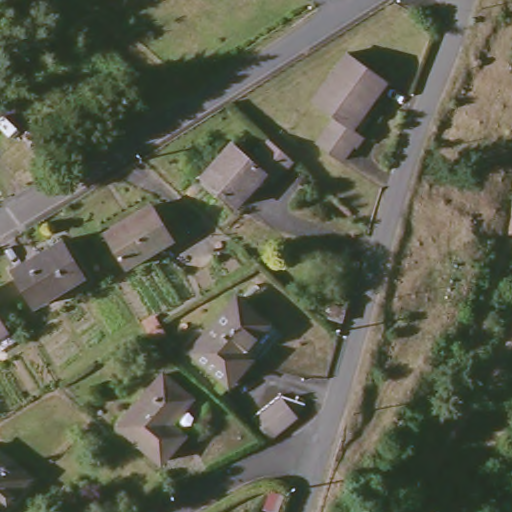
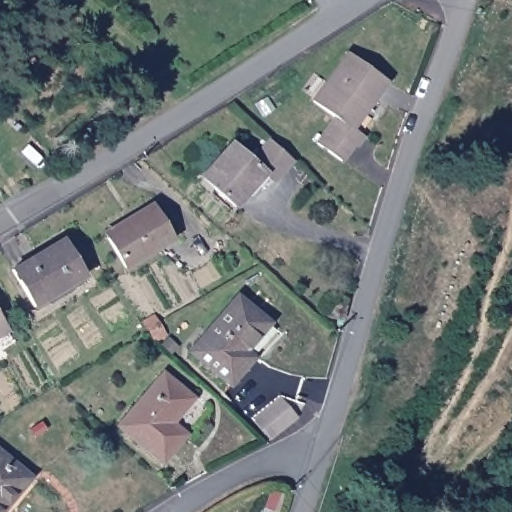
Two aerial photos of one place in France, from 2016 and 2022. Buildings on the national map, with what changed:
unchanged [(344,51),(384,75),(366,104),(361,101),(346,124),(363,134),(358,144),(352,141),(341,159),(314,141),(331,116),(311,103),(344,51)]
unchanged [(266,182),(258,175),(227,205),(198,175),(227,143),(245,161),(264,141),(286,161),(266,182)]
unchanged [(149,206),(168,241),(121,267),(101,234),(149,206)]
unchanged [(77,273),(26,304),(4,267),(56,236),(77,273)]
unchanged [(234,293),(266,318),(241,346),(249,353),(226,381),(186,348),(234,293)]
unchanged [(343,322),(327,319),(330,303),(347,307),(343,322)]
unchanged [(134,321),(144,314),(154,326),(163,337),(156,345),(141,334),(134,321)]
unchanged [(0,332),(0,322),(4,330),(0,332)]
unchanged [(186,398),(166,420),(178,433),(155,458),(114,423),(158,374),(186,398)]
unchanged [(272,438),(254,418),(280,394),(298,414),(272,438)]
unchanged [(19,488),(3,506),(0,504),(0,454),(28,478),(19,488)]

